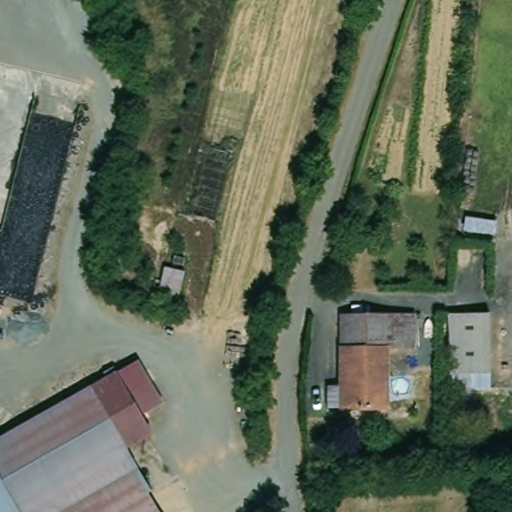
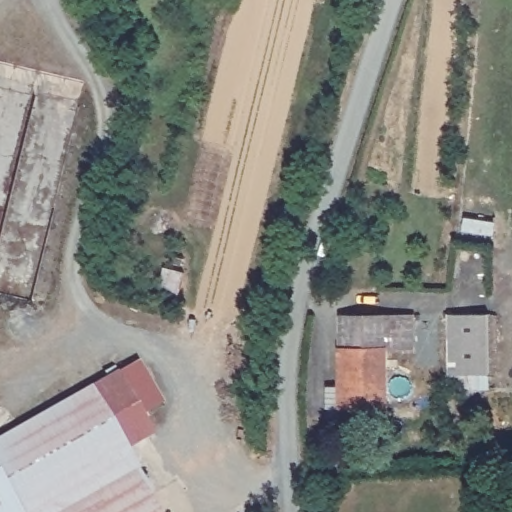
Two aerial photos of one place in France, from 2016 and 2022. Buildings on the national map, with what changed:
unchanged [(185,276),(179,306),(157,302),(165,271),(185,276)]
unchanged [(325,376),(338,378),(346,313),(384,318),(380,348),(388,350),(380,407),(337,400),(321,397),(325,376)]
unchanged [(492,317),(493,393),(452,393),(450,317),(492,317)]
unchanged [(388,350),(380,348),(384,318),(421,322),(417,353),(413,352),(388,350)]
unchanged [(137,352),(164,393),(140,407),(115,366),(137,352)]
unchanged [(115,366),(140,407),(153,425),(124,442),(87,382),(115,366)]
unchanged [(131,467),(54,512),(17,512),(0,485),(0,435),(87,382),(124,442),(137,463),(131,467)]
unchanged [(157,512),(54,512),(131,467),(157,512)]
unchanged [(0,512),(0,485),(17,512),(0,512)]

